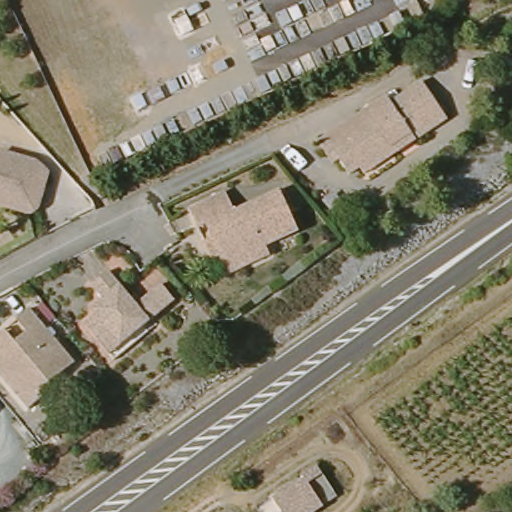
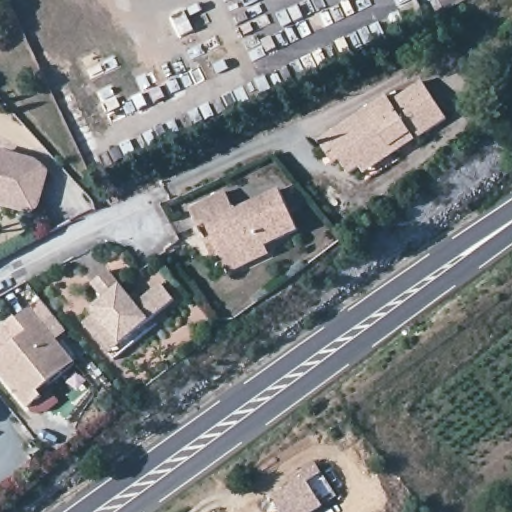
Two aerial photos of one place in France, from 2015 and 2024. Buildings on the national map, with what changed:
unchanged [(332,154),(321,135),(392,94),(397,100),(429,82),(451,121),(418,140),(365,170),(362,164),(350,170),(344,159),(337,162),(332,154)]
unchanged [(49,175),(37,212),(29,216),(0,208),(0,157),(35,166),(49,175)]
unchanged [(297,227),(264,243),(237,255),(225,231),(210,237),(209,234),(203,221),(195,225),(187,205),(222,189),(232,207),(277,187),(297,227)]
unchanged [(264,243),(269,252),(227,271),(216,248),(207,251),(200,237),(209,234),(210,237),(225,231),(237,255),(264,243)]
unchanged [(107,353),(85,327),(97,317),(92,311),(105,300),(94,286),(109,274),(137,306),(162,285),(176,301),(145,328),(122,347),(111,357),(107,353)]
unchanged [(42,395),(29,405),(0,372),(0,349),(2,346),(0,343),(0,328),(2,326),(12,338),(24,328),(14,316),(29,304),(67,348),(73,356),(37,387),(42,395)]
unchanged [(304,479),(301,474),(315,465),(335,497),(313,512),(276,512),(270,501),(304,479)]

